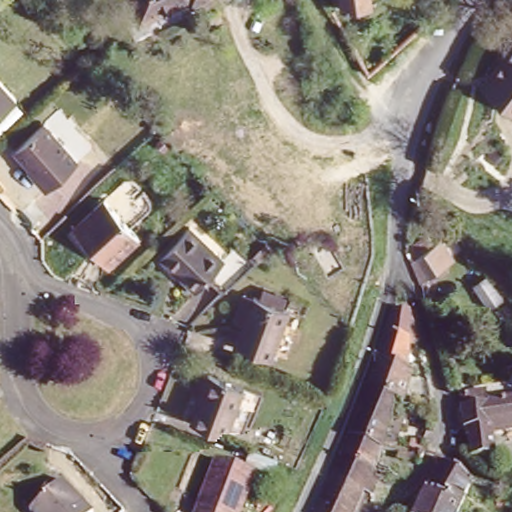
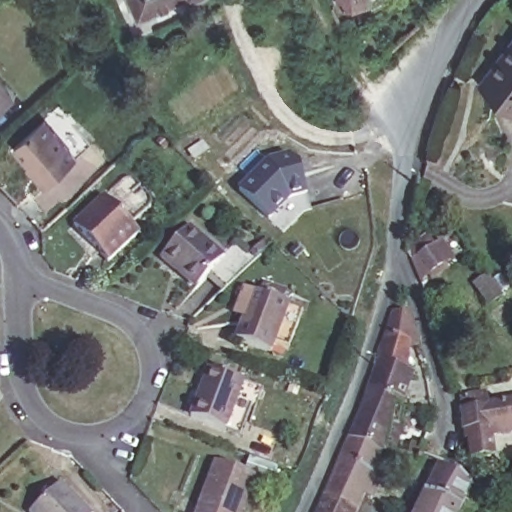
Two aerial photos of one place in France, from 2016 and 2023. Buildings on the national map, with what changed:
unchanged [(140,25),(128,0),(186,0),(140,25)]
unchanged [(189,6),(186,0),(202,0),(189,6)]
unchanged [(341,13),(338,0),(368,0),(370,9),(341,13)]
unchanged [(472,91),(512,48),(512,117),(472,91)]
unchanged [(0,122),(0,85),(18,104),(0,122)]
unchanged [(51,187),(14,150),(43,125),(78,162),(51,187)]
new [(293,199),(271,221),(236,196),(269,158),(291,154),(299,165),(308,196),(293,199)]
unchanged [(71,228),(103,200),(134,235),(105,263),(71,228)]
unchanged [(174,275),(163,264),(192,234),(226,263),(201,291),(197,295),(174,275)]
unchanged [(437,282),(434,278),(425,285),(415,263),(418,263),(412,252),(434,237),(441,247),(447,243),(457,237),(469,255),(459,262),(449,268),(453,272),(437,282)]
unchanged [(269,363),(231,350),(240,326),(232,322),(242,296),(251,299),(256,301),(261,290),(284,299),(281,310),(302,317),(289,356),(274,350),(269,363)]
unchanged [(366,394),(378,362),(377,357),(392,317),(409,317),(418,348),(409,350),(406,371),(412,373),(402,407),(366,394)]
unchanged [(233,442),(218,436),(183,423),(195,393),(183,388),(191,370),(236,387),(253,393),(233,442)]
unchanged [(468,458),(465,436),(465,427),(463,427),(460,407),(463,406),(462,394),(487,391),(489,403),(512,400),(512,430),(494,432),(496,456),(468,458)]
unchanged [(381,452),(348,440),(357,420),(364,400),(366,394),(402,407),(398,426),(388,423),(381,450),(381,452)]
unchanged [(348,440),(381,452),(376,478),(379,481),(371,500),(364,497),(357,512),(318,512),(323,501),(348,440)]
unchanged [(409,441),(423,444),(420,452),(419,452),(407,450),(409,441)]
unchanged [(475,480),(461,512),(419,512),(444,458),(475,480)]
unchanged [(243,512),(197,512),(215,466),(254,480),(243,512)]
unchanged [(31,512),(27,507),(56,480),(86,512),(31,512)]

